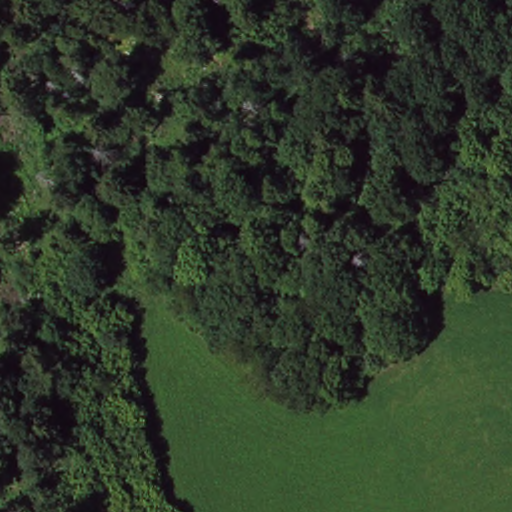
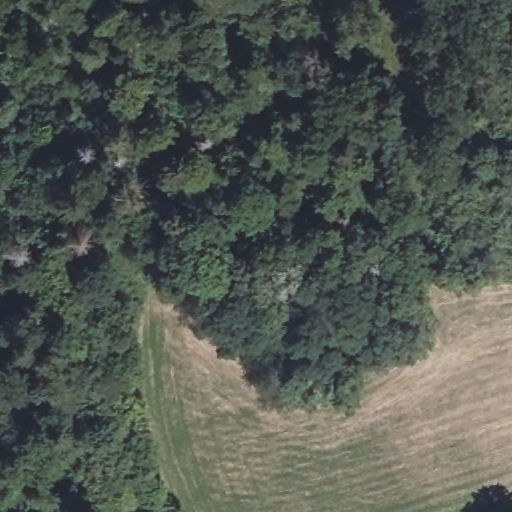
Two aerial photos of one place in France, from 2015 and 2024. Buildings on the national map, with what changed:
[]

